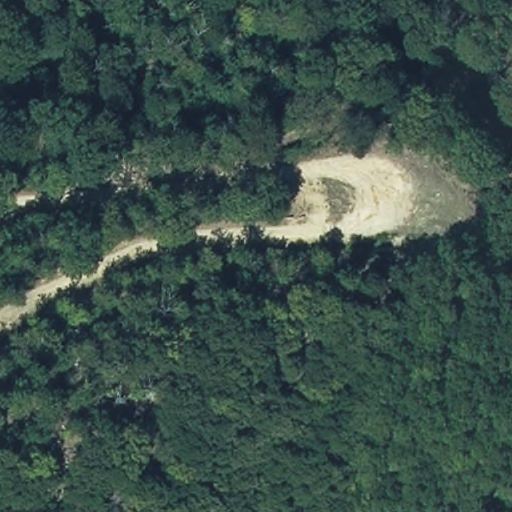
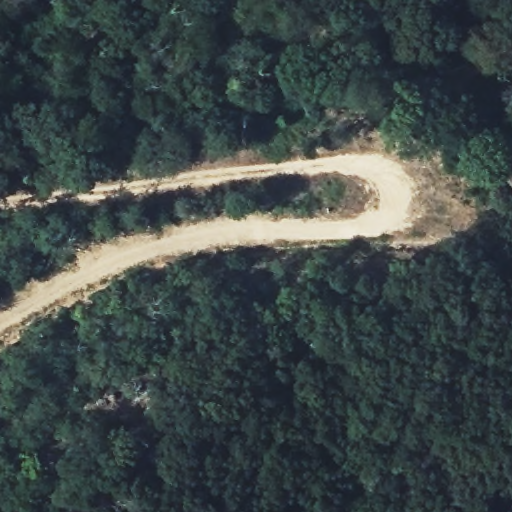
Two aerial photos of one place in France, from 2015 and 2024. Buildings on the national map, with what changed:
unchanged [(512,178),(505,173),(512,166),(512,178)]

